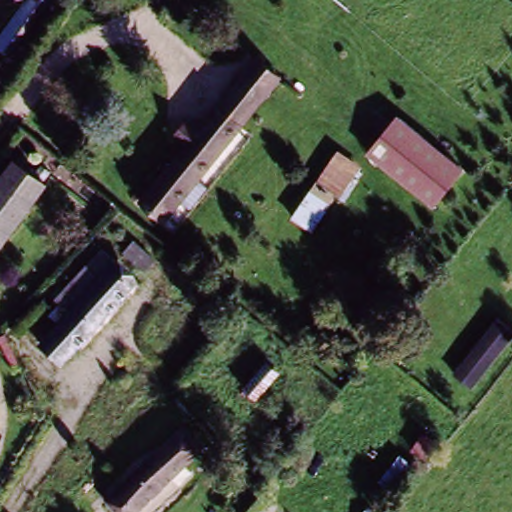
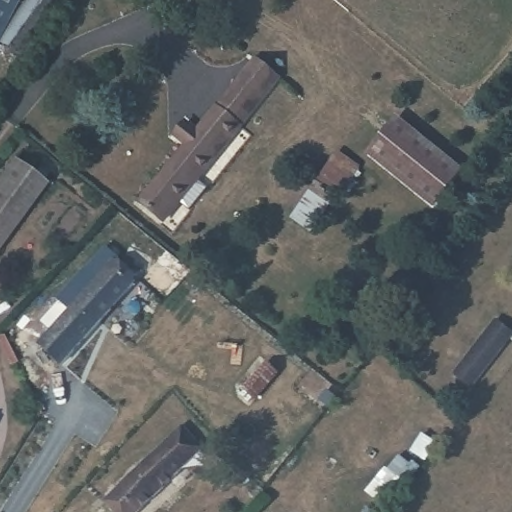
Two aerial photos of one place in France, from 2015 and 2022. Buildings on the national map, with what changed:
unchanged [(9,62),(0,56),(0,35),(27,0),(32,0),(48,11),(9,62)]
unchanged [(246,79),(275,104),(156,219),(128,194),(179,147),(163,133),(173,124),(186,135),(246,79)]
unchanged [(399,120),(461,168),(439,214),(368,159),(399,120)]
unchanged [(310,227),(293,214),(326,171),(329,173),(332,168),(339,158),(356,170),(347,179),(343,184),(344,185),(310,227)]
unchanged [(43,184),(0,243),(0,176),(11,160),(43,184)]
unchanged [(93,279),(108,263),(128,280),(58,363),(36,344),(58,322),(42,309),(63,285),(79,267),(93,279)]
unchanged [(504,323),(512,328),(512,341),(476,382),(461,370),(504,323)]
unchanged [(240,389),(265,363),(278,382),(254,404),(240,389)]
unchanged [(99,502),(153,452),(173,434),(193,454),(173,472),(131,512),(108,512),(99,502)]
unchanged [(446,491),(432,503),(420,490),(434,479),(446,491)]

